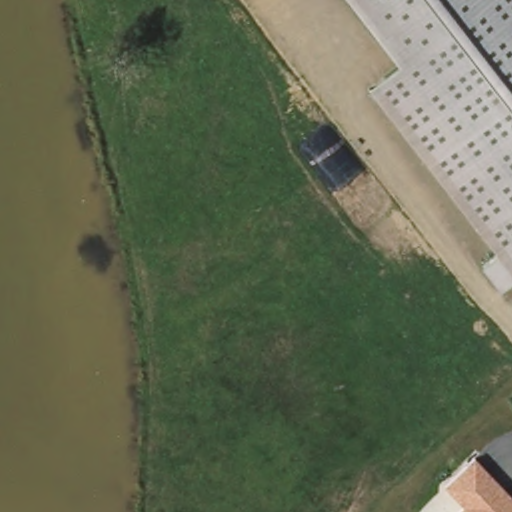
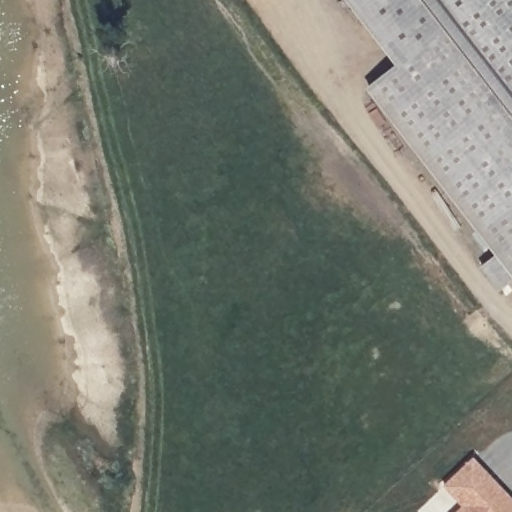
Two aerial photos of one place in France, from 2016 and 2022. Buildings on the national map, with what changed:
unchanged [(482,266),(496,255),(367,89),(397,65),(347,0),(512,0),(512,280),(499,290),(482,266)]
unchanged [(443,486),(474,457),(512,499),(512,512),(456,512),(462,507),(443,486)]

